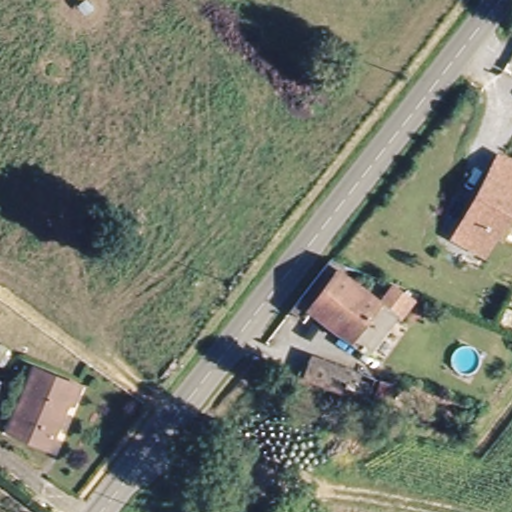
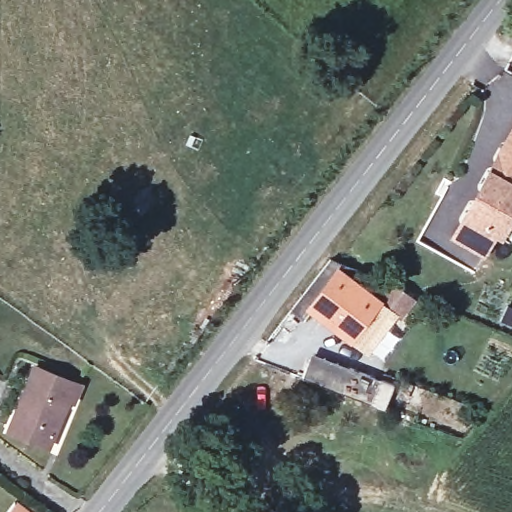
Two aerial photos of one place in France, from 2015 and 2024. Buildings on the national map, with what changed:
unchanged [(490,256),(461,239),(505,159),(512,162),(512,232),(509,238),(504,234),(490,256)]
unchanged [(348,268),(340,280),(379,304),(391,287),(410,300),(402,314),(400,317),(396,315),(372,350),(311,313),(304,323),(288,316),(331,261),(348,268)]
unchanged [(315,359),(376,380),(395,386),(389,410),(309,384),(315,359)]
unchanged [(34,365),(82,388),(72,410),(64,405),(44,448),(3,426),(34,365)]

